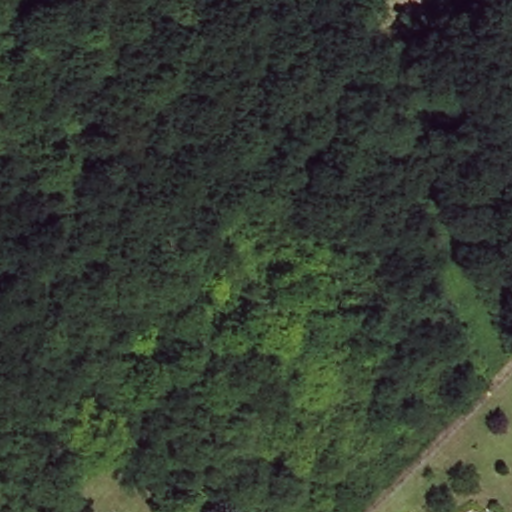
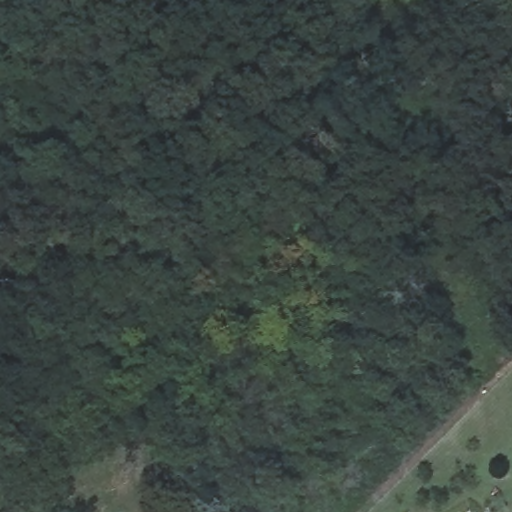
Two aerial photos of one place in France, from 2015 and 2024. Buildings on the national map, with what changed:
[]

